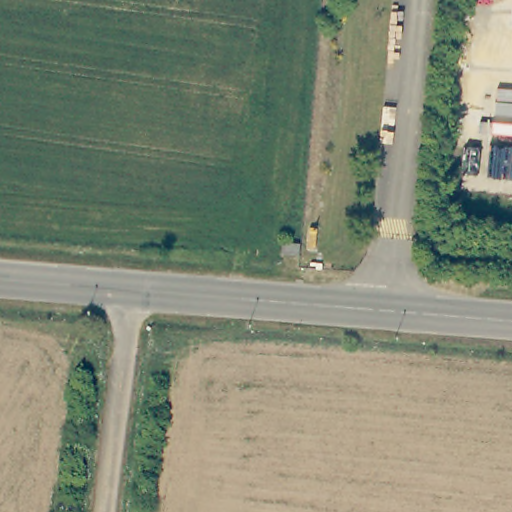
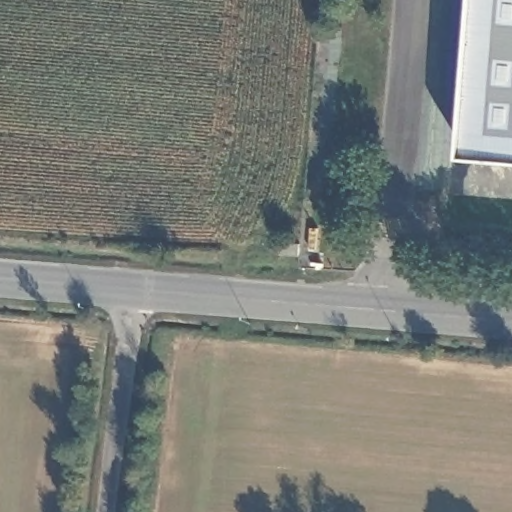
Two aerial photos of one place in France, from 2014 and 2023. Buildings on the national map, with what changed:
demolished [(474,0),(512,0),(512,194),(457,192),(474,0)]
new [(480,0),(512,0),(512,160),(466,157),(480,0)]
unchanged [(293,240),(291,255),(273,253),(274,238),(293,240)]

